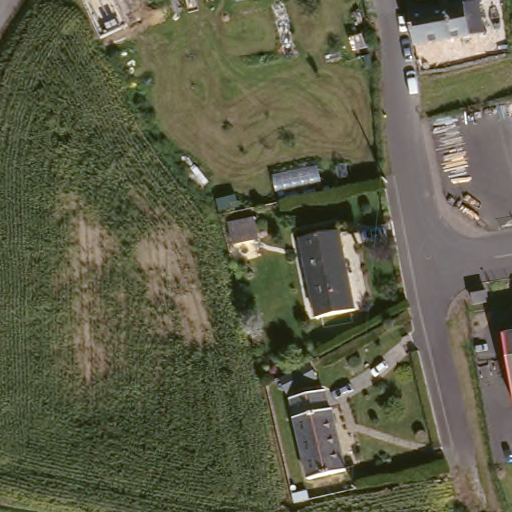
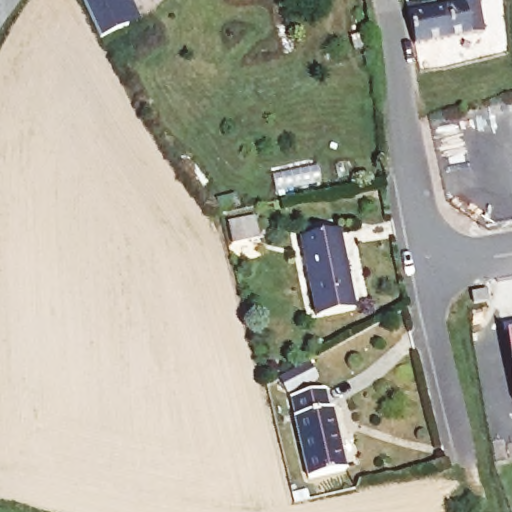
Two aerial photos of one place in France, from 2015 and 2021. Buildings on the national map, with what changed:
new [(131,0),(142,23),(101,41),(82,0),(131,0)]
unchanged [(412,7),(415,19),(471,8),(477,40),(405,54),(397,11),(412,7)]
unchanged [(222,218),(256,210),(261,232),(227,241),(222,218)]
unchanged [(336,232),(353,309),(317,316),(300,240),(336,232)]
unchanged [(512,361),(507,335),(512,334),(512,361)]
unchanged [(298,365),(303,362),(311,376),(283,390),(276,376),(298,365)]
unchanged [(298,415),(293,397),(322,390),(327,409),(333,408),(347,469),(308,479),(292,416),(298,415)]

